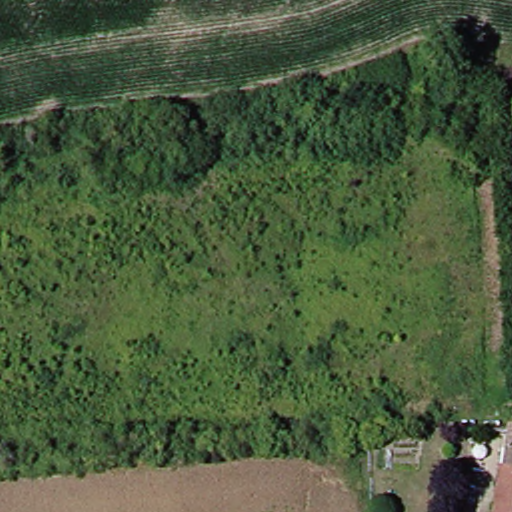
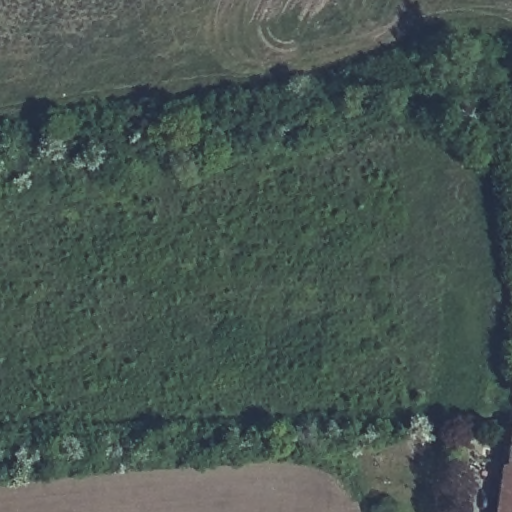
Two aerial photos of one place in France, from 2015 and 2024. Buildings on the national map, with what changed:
unchanged [(512,424),(512,512),(496,512),(501,424),(512,424)]

